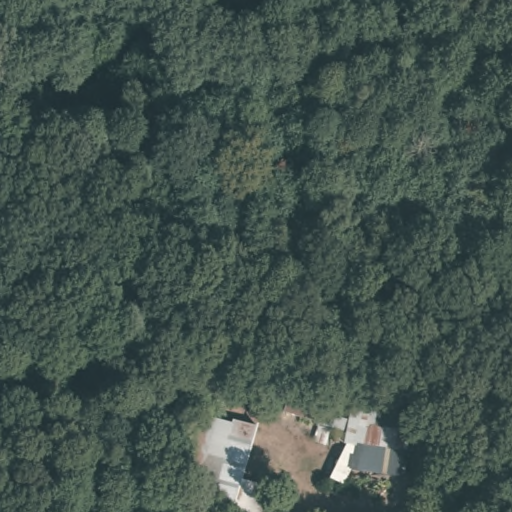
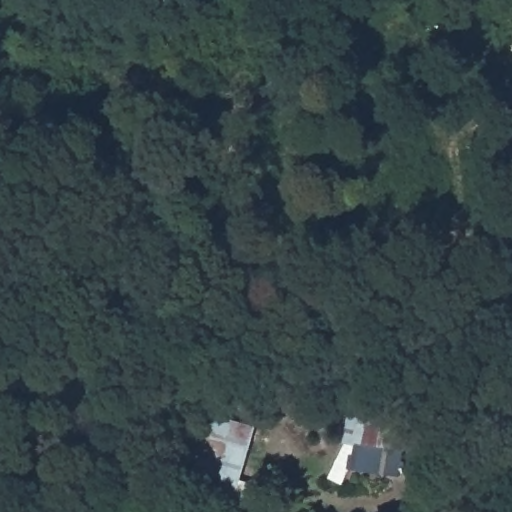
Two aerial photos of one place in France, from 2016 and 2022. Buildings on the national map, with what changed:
unchanged [(242,485),(262,493),(258,512),(232,512),(232,510),(176,493),(197,421),(254,432),(242,485)]
unchanged [(397,501),(390,509),(392,512),(357,512),(351,507),(347,512),(335,512),(327,501),(370,473),(397,501)]

